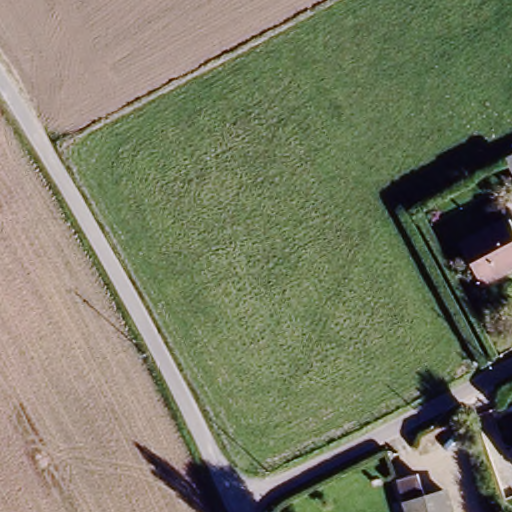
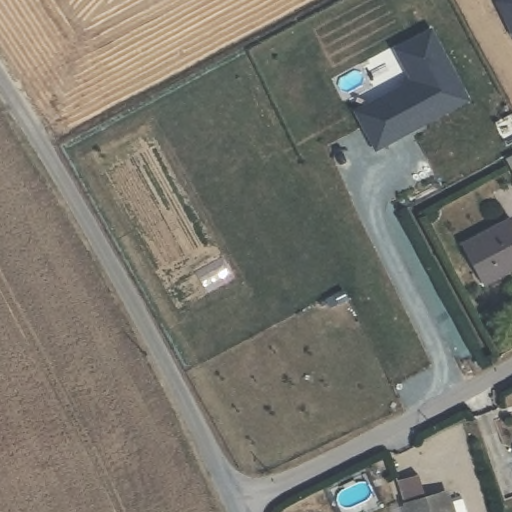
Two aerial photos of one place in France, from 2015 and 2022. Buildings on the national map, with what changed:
new [(451,112),(375,152),(355,113),(413,82),(396,51),(432,32),(462,90),(469,102),(451,112)]
unchanged [(512,162),(512,175),(506,166),(512,162)]
unchanged [(458,246),(502,220),(505,225),(512,221),(512,265),(481,283),(458,246)]
unchanged [(424,500),(435,496),(441,512),(405,512),(394,478),(414,471),(424,500)]

